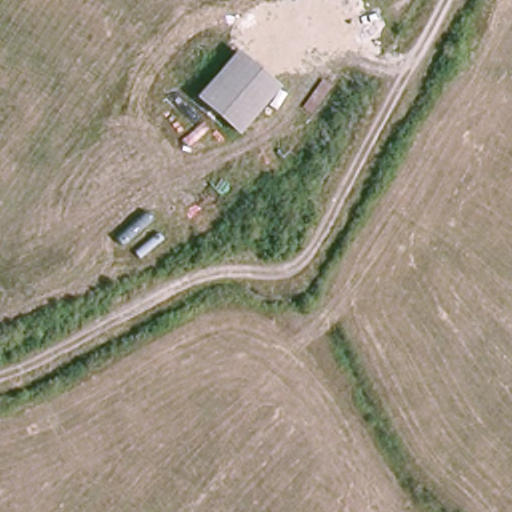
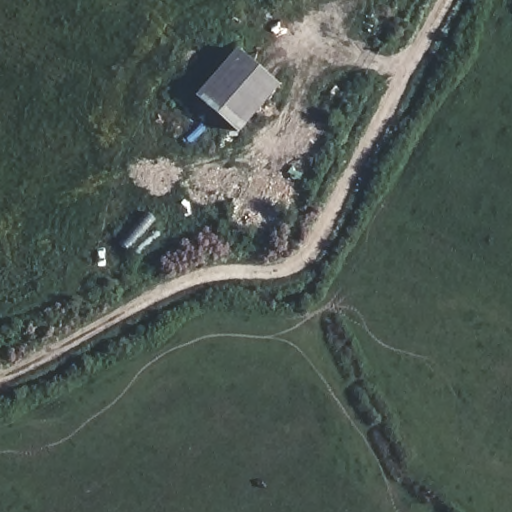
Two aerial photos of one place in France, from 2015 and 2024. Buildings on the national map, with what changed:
unchanged [(236,47),(280,85),(238,131),(193,92),(236,47)]

